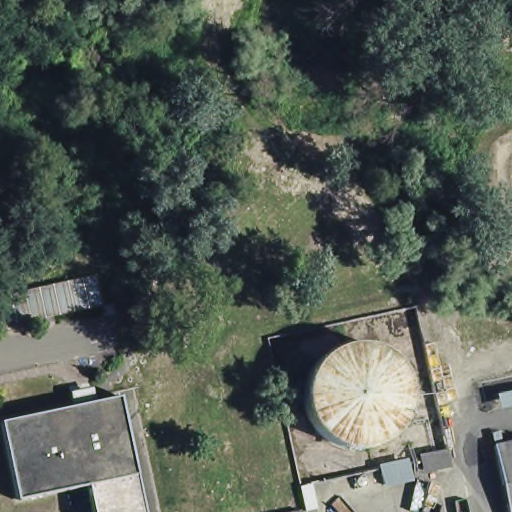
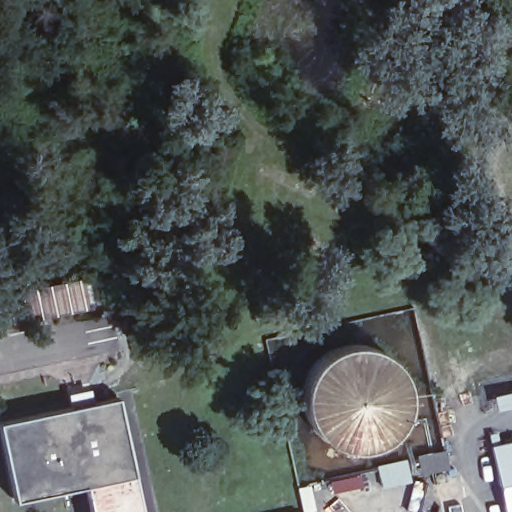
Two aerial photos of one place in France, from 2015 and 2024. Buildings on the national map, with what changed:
unchanged [(97,268),(104,304),(0,326),(0,285),(97,268)]
unchanged [(138,470),(88,482),(18,498),(3,422),(74,406),(70,388),(93,382),(96,400),(123,394),(138,470)]
unchanged [(512,440),(512,512),(506,512),(493,444),(512,440)]
unchanged [(95,512),(88,482),(138,470),(147,512),(95,512)]
unchanged [(291,503),(292,512),(250,512),(249,512),(291,503)]

